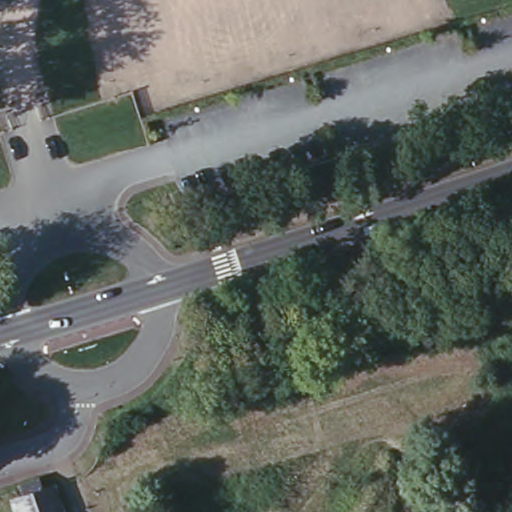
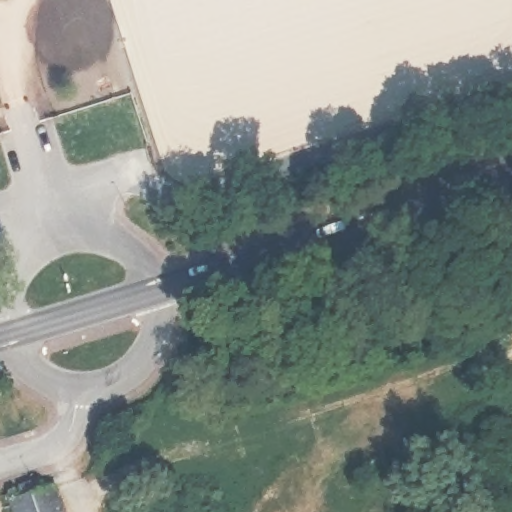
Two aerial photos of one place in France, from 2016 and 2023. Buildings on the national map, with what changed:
unchanged [(50,512),(6,512),(5,510),(12,506),(11,496),(32,488),(37,499),(45,497),(50,512)]

